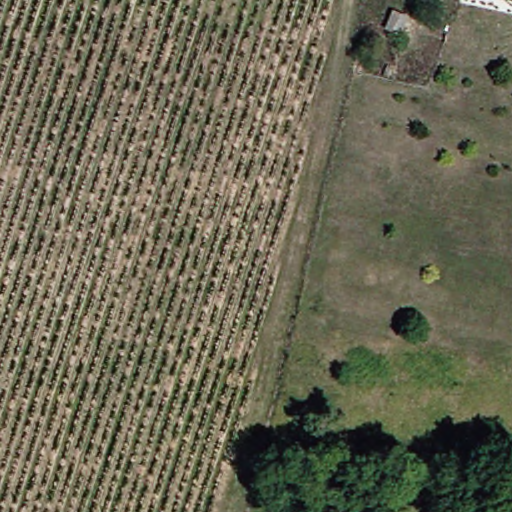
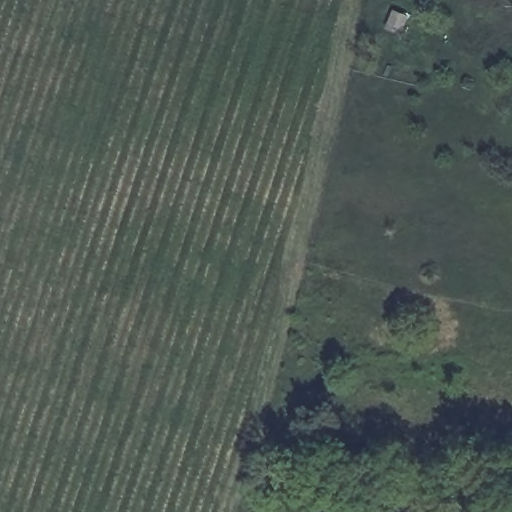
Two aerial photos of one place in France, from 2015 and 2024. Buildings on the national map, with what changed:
unchanged [(379,22),(387,5),(404,12),(397,30),(379,22)]

